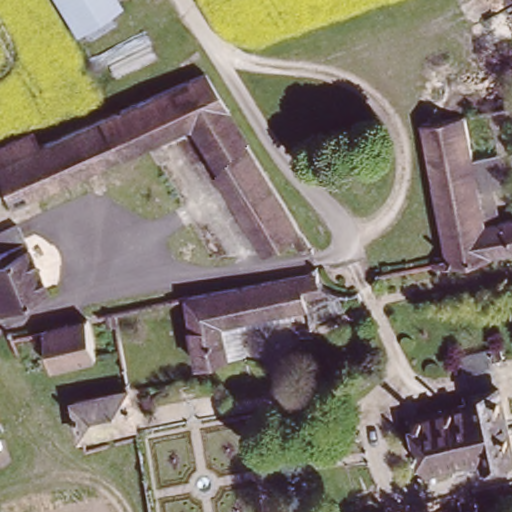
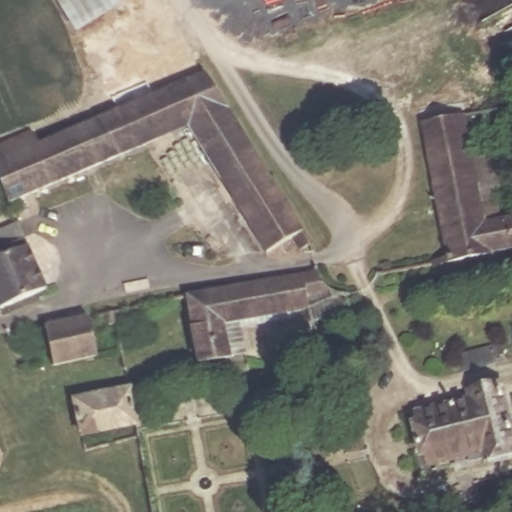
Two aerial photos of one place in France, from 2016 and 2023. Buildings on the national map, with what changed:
unchanged [(119,7),(78,29),(61,0),(115,0),(119,7)]
unchanged [(209,71),(315,244),(302,250),(297,239),(265,253),(185,125),(5,201),(0,188),(0,158),(207,71),(209,71)]
unchanged [(455,110),(467,109),(474,146),(432,152),(432,147),(426,116),(455,110)]
unchanged [(484,145),(490,181),(482,182),(484,192),(492,190),(495,217),(512,215),(512,247),(452,257),(447,235),(432,152),(474,146),(484,145)]
unchanged [(42,290),(0,307),(0,231),(15,225),(42,290)]
unchanged [(315,311),(228,327),(234,357),(204,363),(191,295),(289,276),(307,273),(315,311)]
unchanged [(119,311),(120,325),(110,327),(108,314),(119,311)]
unchanged [(47,331),(94,320),(101,352),(57,365),(47,331)]
unchanged [(140,423),(84,434),(77,396),(132,386),(140,423)]
unchanged [(420,413),(474,403),(472,393),(506,387),(512,417),(512,458),(485,463),(483,455),(430,466),(427,451),(418,452),(414,431),(423,430),(420,413)]

